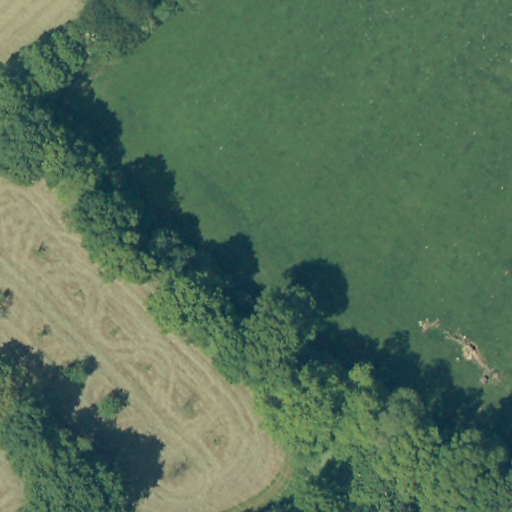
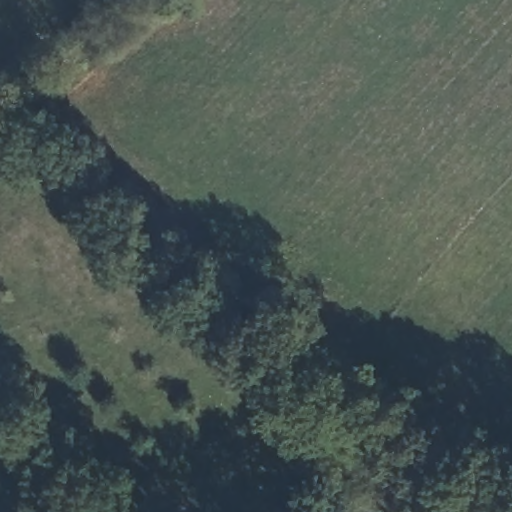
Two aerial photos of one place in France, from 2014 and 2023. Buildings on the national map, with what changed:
[]

